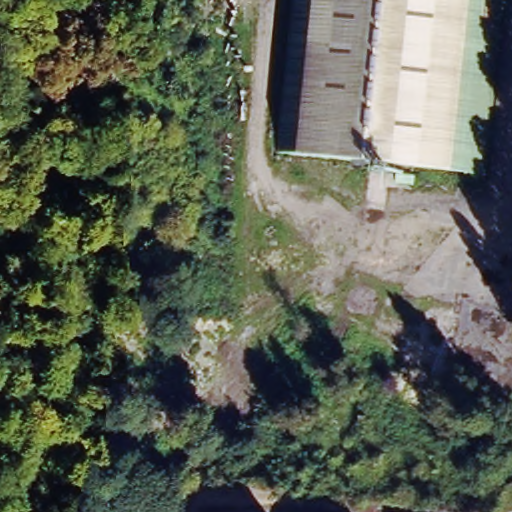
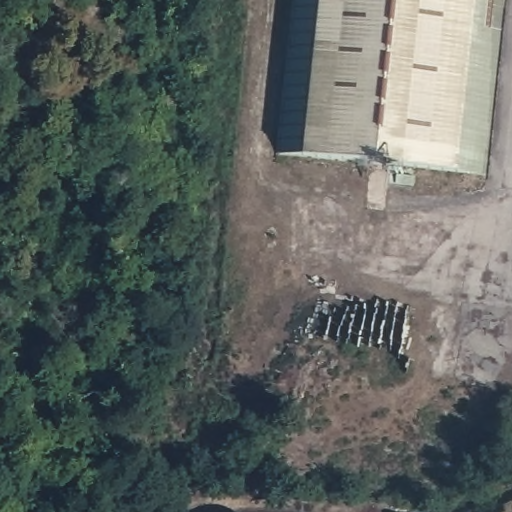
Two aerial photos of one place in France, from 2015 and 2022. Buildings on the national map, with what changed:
unchanged [(279,154),(294,0),(502,0),(484,177),(279,154)]
unchanged [(395,512),(386,512),(386,511),(395,512)]

